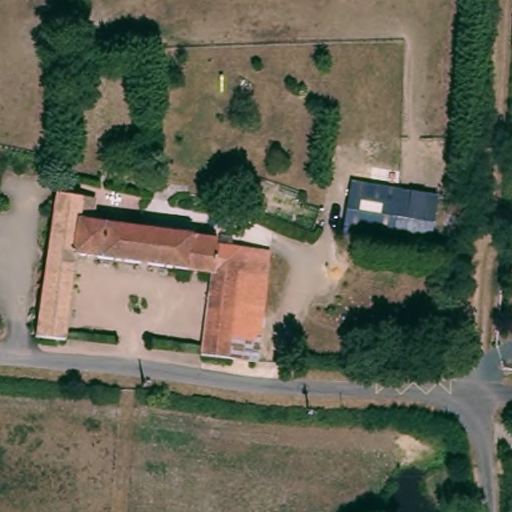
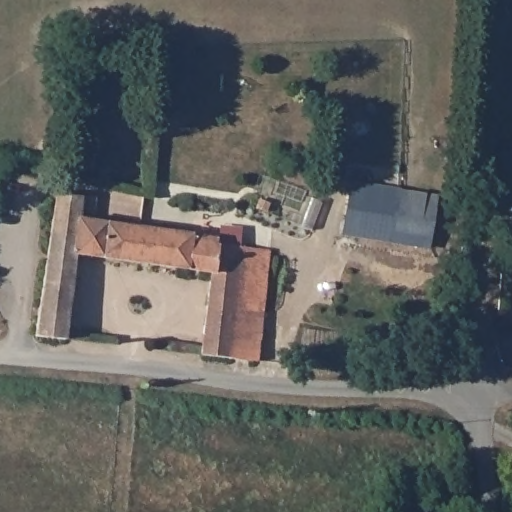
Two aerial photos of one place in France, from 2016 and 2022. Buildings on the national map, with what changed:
unchanged [(360,180),(375,182),(372,196),(392,197),(394,186),(443,196),(435,247),(347,232),(360,180)]
unchanged [(70,339),(40,336),(62,195),(94,202),(90,219),(207,237),(207,242),(280,253),(275,291),(270,323),(263,322),(257,362),(209,357),(219,274),(85,255),(70,339)]

